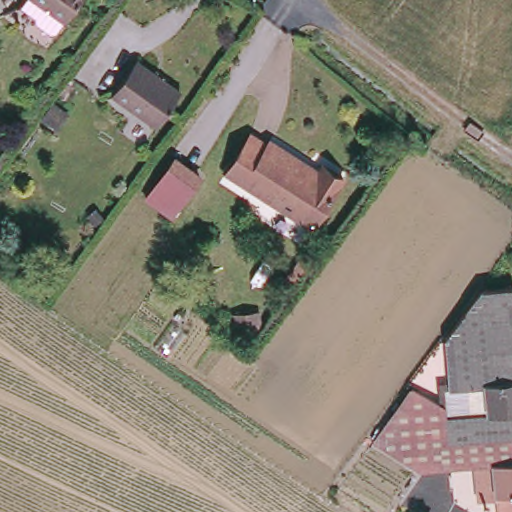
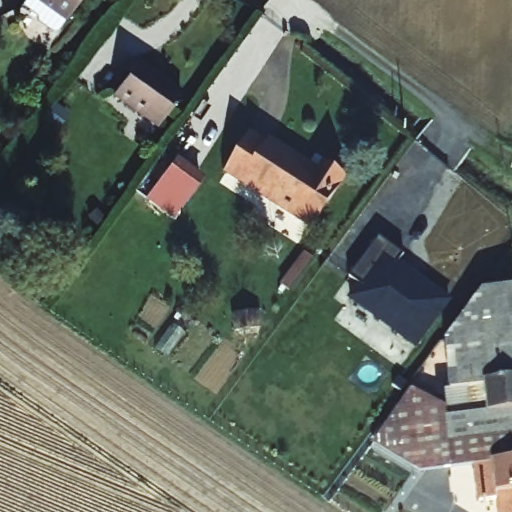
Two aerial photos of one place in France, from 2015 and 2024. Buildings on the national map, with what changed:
unchanged [(65,6),(58,16),(54,17),(45,10),(44,6),(38,2),(36,4),(31,0),(77,0),(70,9),(65,6)]
unchanged [(162,121),(117,89),(141,56),(186,88),(162,121)]
unchanged [(53,128),(41,119),(53,102),(65,111),(53,128)]
unchanged [(266,145),(269,141),(318,173),(323,165),(343,178),(311,227),(226,172),(250,135),(266,145)]
unchanged [(146,198),(176,157),(200,175),(171,216),(146,198)]
new [(349,298),(359,285),(348,277),(378,236),(403,255),(394,267),(414,282),(418,278),(448,301),(414,346),(349,298)]
unchanged [(312,257),(288,289),(281,284),(306,252),(312,257)]
unchanged [(453,442),(449,409),(448,389),(454,388),(450,339),(486,291),(512,289),(512,435),(453,442)]
unchanged [(233,315),(257,313),(259,328),(235,330),(233,315)]
unchanged [(453,442),(512,435),(512,512),(502,512),(501,499),(484,501),(481,464),(424,470),(379,443),(416,390),(449,409),(453,442)]

